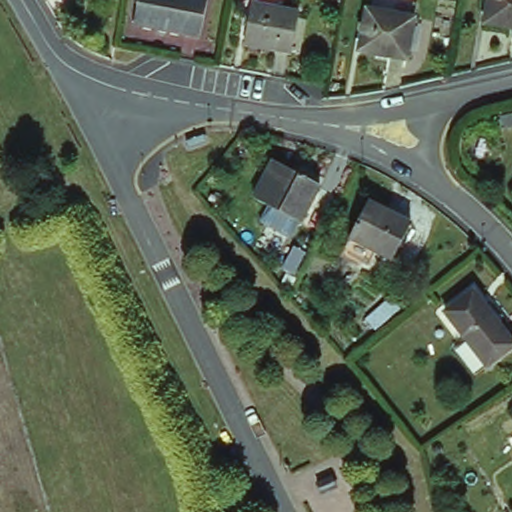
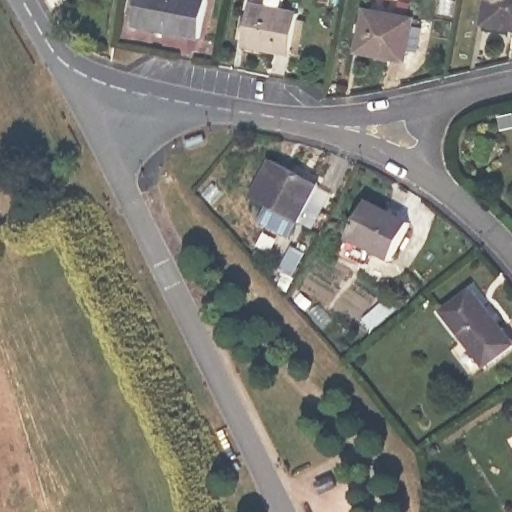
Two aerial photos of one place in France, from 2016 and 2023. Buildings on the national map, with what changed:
unchanged [(196,41),(134,27),(139,0),(204,0),(196,41)]
unchanged [(300,10),(289,53),(242,41),(252,0),(258,0),(300,10)]
unchanged [(512,31),(477,23),(483,0),(512,0),(512,31)]
unchanged [(416,15),(404,57),(357,45),(367,4),(416,15)]
unchanged [(318,184),(297,220),(295,219),(286,234),(256,217),(265,202),(250,193),(272,157),(318,184)]
unchanged [(342,248),(352,232),(372,198),(417,225),(396,259),(378,248),(368,265),(342,248)]
unchanged [(474,292),(510,343),(479,364),(444,312),(474,292)]

